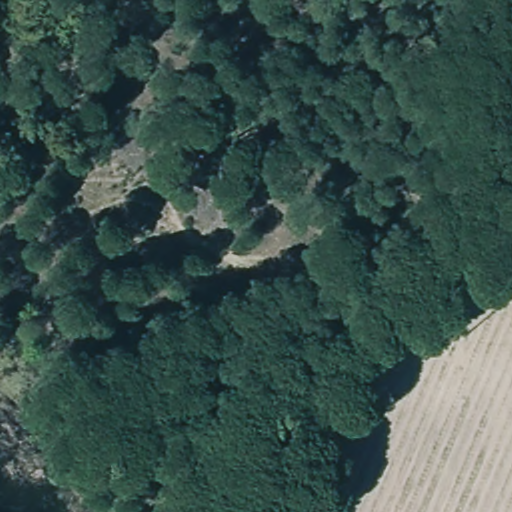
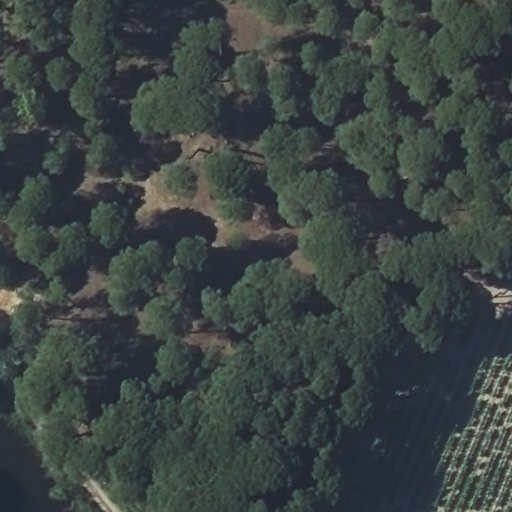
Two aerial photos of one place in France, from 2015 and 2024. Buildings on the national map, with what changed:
[]

